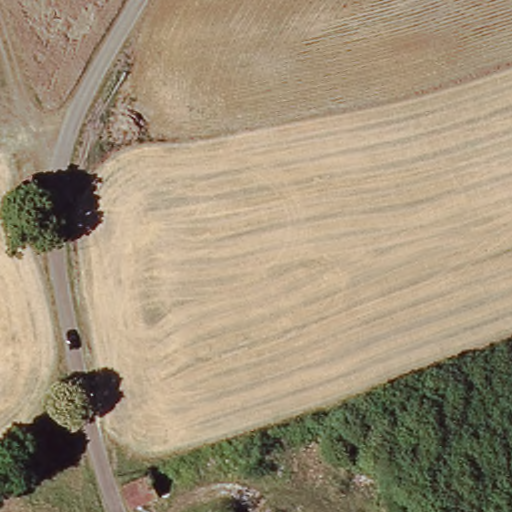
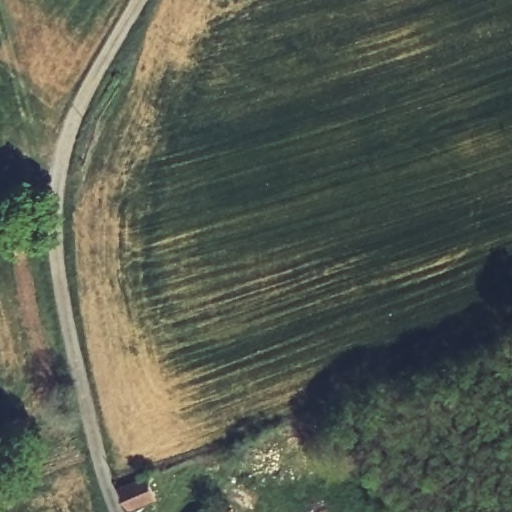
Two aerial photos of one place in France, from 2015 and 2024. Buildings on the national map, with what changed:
unchanged [(149,467),(158,490),(129,500),(119,477),(149,467)]
unchanged [(222,512),(211,512),(221,508),(222,512)]

